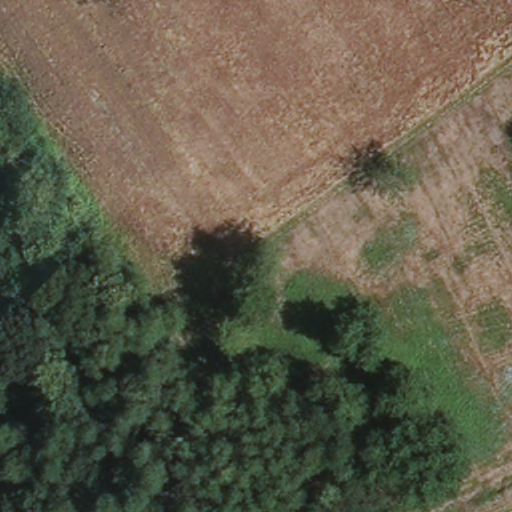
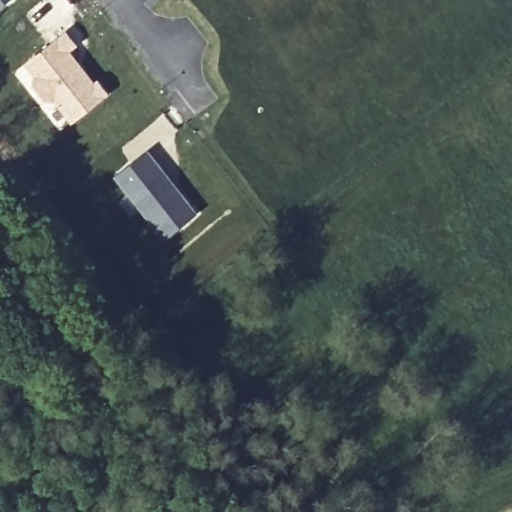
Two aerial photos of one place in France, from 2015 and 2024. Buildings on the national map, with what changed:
new [(8,0),(0,7),(0,0),(8,0)]
new [(62,29),(77,45),(70,51),(110,93),(68,125),(47,101),(43,104),(12,72),(62,29)]
new [(146,149),(198,212),(163,241),(112,176),(146,149)]

